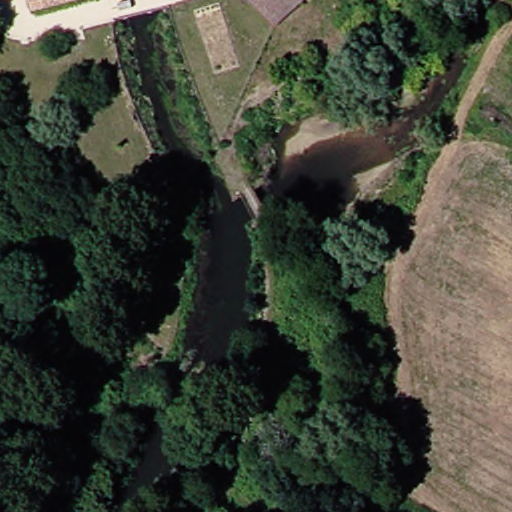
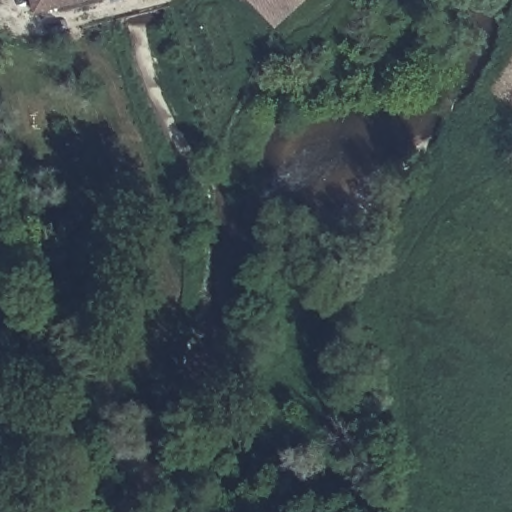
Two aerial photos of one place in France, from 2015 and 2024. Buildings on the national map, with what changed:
unchanged [(23,10),(19,0),(68,0),(23,10)]
unchanged [(270,23),(247,0),(296,0),(270,23)]

